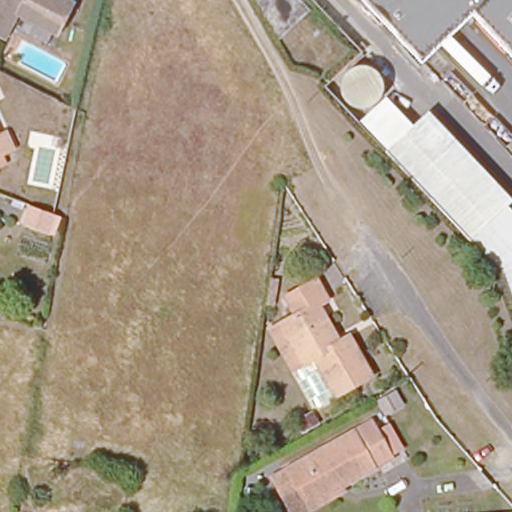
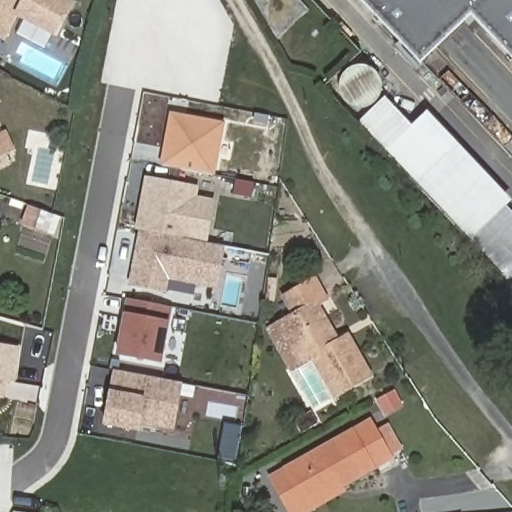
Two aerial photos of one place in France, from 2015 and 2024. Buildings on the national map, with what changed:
unchanged [(73,5),(56,37),(18,17),(5,41),(0,39),(0,0),(62,0),(73,5)]
unchanged [(471,16),(421,64),(360,0),(512,0),(512,59),(471,16)]
unchanged [(381,87),(380,89),(380,90),(379,92),(378,94),(377,95),(376,97),(374,98),(373,99),(371,100),(369,101),(368,101),(366,102),(364,102),(362,102),(360,102),(358,101),(356,101),(355,100),(353,99),(351,98),(350,97),(349,95),(348,94),(347,92),(346,90),(346,88),(345,87),(345,85),(345,83),(345,81),(346,79),(346,77),(347,75),(348,74),(349,72),(350,71),(352,69),(353,68),(355,67),(357,67),(358,66),(360,66),(362,65),(364,66),(366,66),(368,66),(370,67),(371,68),(373,69),(375,70),(376,71),(377,72),(378,74),(379,76),(380,77),(381,79),(381,81),(382,83),(382,85),(381,87)]
unchanged [(384,96),(411,122),(381,151),(354,124),(384,96)]
new [(224,123),(214,176),(160,165),(170,113),(224,123)]
unchanged [(465,240),(381,151),(411,122),(418,115),(503,204),(465,240)]
unchanged [(13,148),(0,155),(0,137),(6,134),(13,148)]
new [(146,178),(216,190),(214,200),(224,202),(216,244),(142,230),(136,229),(146,178)]
unchanged [(503,204),(512,215),(512,329),(496,272),(465,240),(503,204)]
unchanged [(53,231),(45,228),(25,221),(31,206),(50,213),(59,216),(53,231)]
new [(142,230),(216,244),(223,245),(216,285),(168,276),(165,290),(132,283),(142,230)]
unchanged [(354,336),(376,376),(341,395),(319,357),(297,369),(275,330),(300,315),(290,296),(320,279),(332,299),(323,305),(344,341),(354,336)]
new [(129,298),(172,306),(161,361),(118,353),(129,298)]
new [(14,382),(5,381),(1,404),(0,404),(0,346),(19,348),(14,382)]
new [(116,369),(182,382),(173,428),(139,421),(138,430),(106,423),(116,369)]
unchanged [(398,384),(408,402),(388,414),(377,396),(398,384)]
unchanged [(345,492),(342,488),(311,506),(292,473),(375,426),(396,462),(345,492)]
unchanged [(342,488),(345,492),(348,495),(319,512),(296,512),(279,480),(292,473),(311,506),(342,488)]

